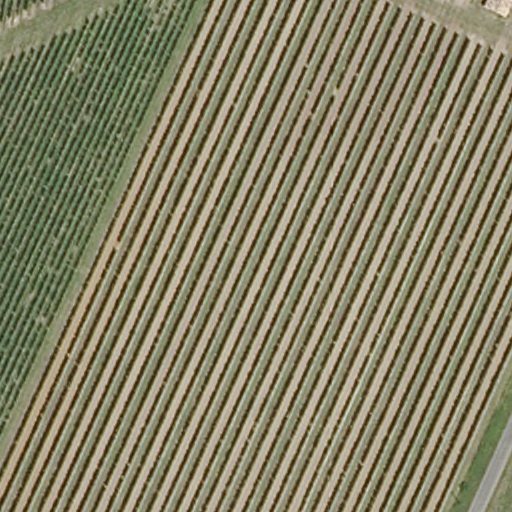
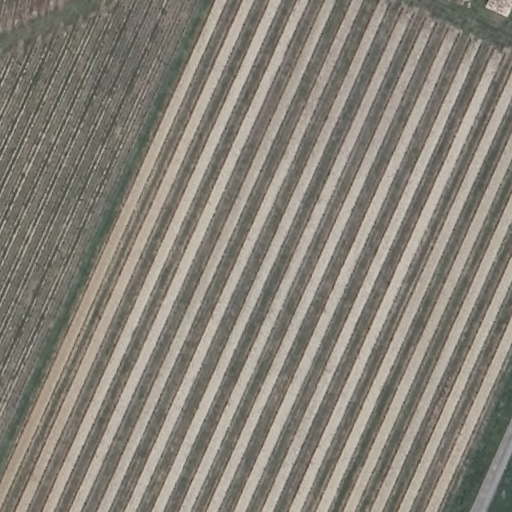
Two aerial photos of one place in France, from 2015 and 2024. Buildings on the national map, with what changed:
unchanged [(491,0),(512,0),(512,4),(507,17),(488,10),(491,0)]

